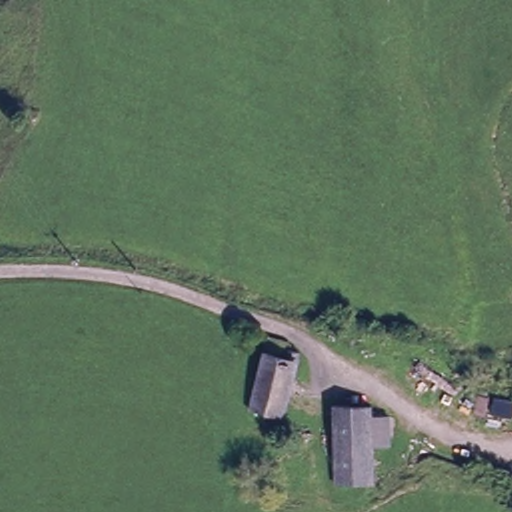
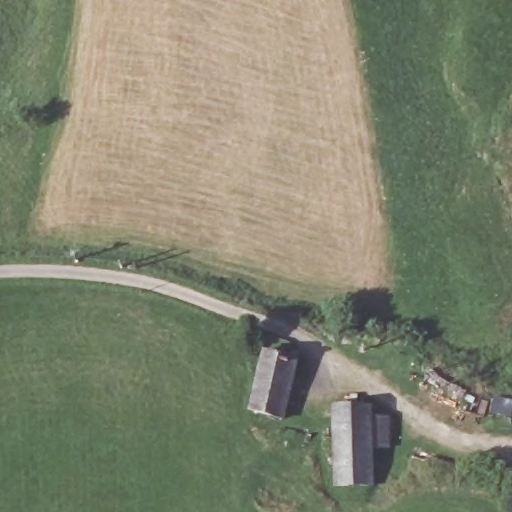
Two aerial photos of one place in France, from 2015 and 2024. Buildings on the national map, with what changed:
unchanged [(268,343),(290,349),(289,356),(301,361),(276,425),(243,415),(262,357),(268,343)]
unchanged [(332,410),(368,410),(369,420),(396,418),(398,449),(371,449),(372,474),(372,490),(337,491),(334,437),(332,410)]

